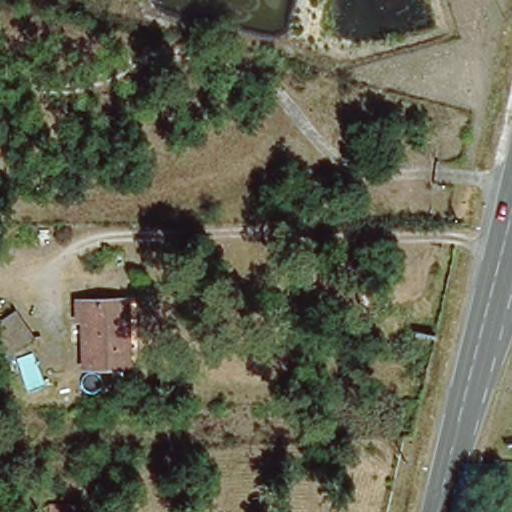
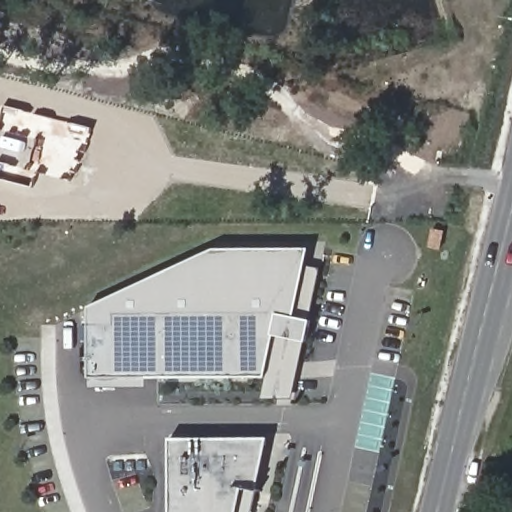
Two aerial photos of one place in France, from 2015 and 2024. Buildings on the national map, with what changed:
new [(214,249),(309,250),(306,267),(320,270),(310,321),(305,342),(292,398),(261,400),(266,377),(148,376),(89,378),(90,307),(214,249)]
demolished [(126,373),(83,374),(82,325),(76,325),(76,306),(119,306),(120,324),(126,324),(126,373)]
demolished [(23,334),(0,350),(0,329),(13,320),(23,334)]
new [(270,439),(259,490),(254,512),(171,512),(171,440),(270,439)]

